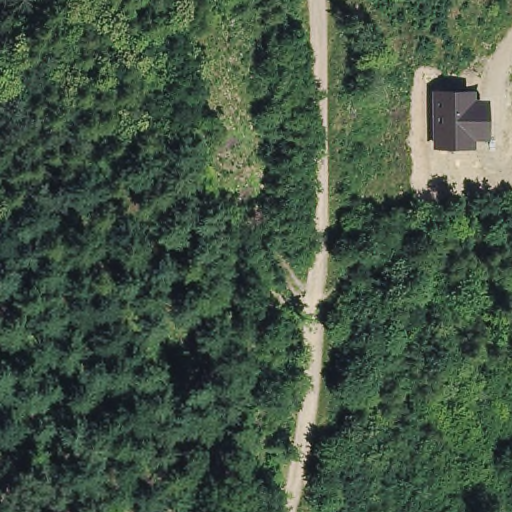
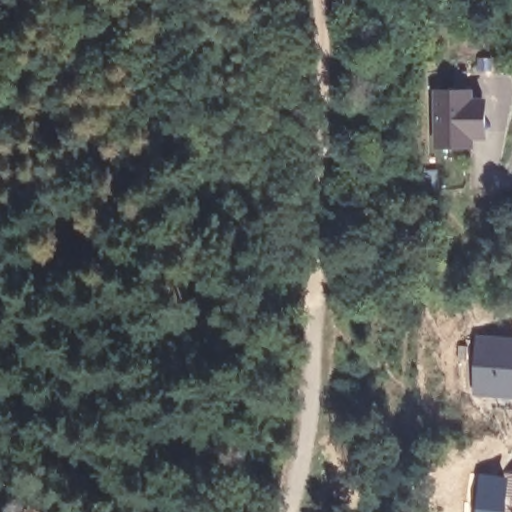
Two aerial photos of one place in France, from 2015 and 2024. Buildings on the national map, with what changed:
unchanged [(474,91),(475,99),(487,99),(489,140),(475,141),(475,149),(435,149),(435,91),(474,91)]
new [(512,337),(512,399),(470,398),(475,336),(512,337)]
new [(479,476),(505,477),(504,512),(476,512),(479,476)]

